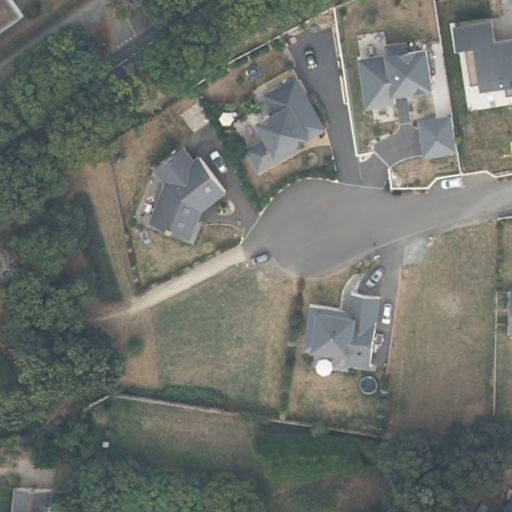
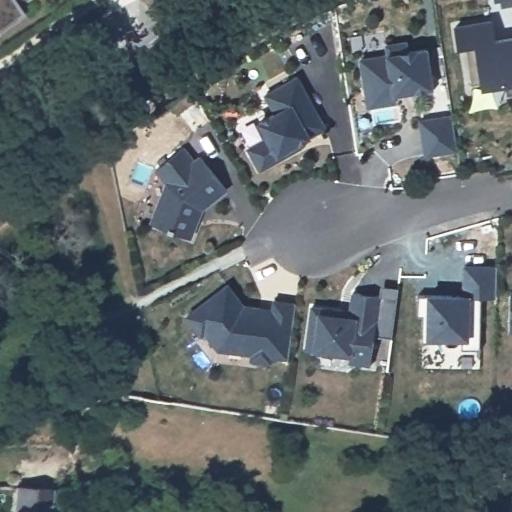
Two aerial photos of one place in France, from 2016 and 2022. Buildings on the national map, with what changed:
unchanged [(14,0),(26,16),(0,34),(0,0),(14,0)]
new [(503,0),(512,0),(512,4),(503,5),(503,0)]
unchanged [(457,47),(453,28),(492,23),(495,41),(512,39),(512,94),(507,95),(506,86),(483,89),(483,84),(470,84),(465,45),(457,47)]
unchanged [(396,95),(396,102),(367,107),(361,57),(386,52),(427,45),(433,90),(396,95)]
unchanged [(266,137),(257,122),(273,113),(263,95),(295,77),(323,127),(307,136),(306,132),(295,139),(299,146),(260,168),(247,146),(266,137)]
unchanged [(456,151),(425,156),(417,120),(451,115),(456,151)]
unchanged [(182,146),(194,160),(199,155),(226,187),(201,206),(190,235),(151,220),(166,180),(155,167),(182,146)]
new [(462,294),(463,265),(496,266),(496,298),(480,297),(478,350),(461,348),(462,341),(426,339),(426,315),(417,315),(418,295),(427,295),(427,293),(462,294)]
new [(295,302),(288,360),(272,357),(272,363),(251,361),(252,356),(218,351),(206,335),(201,337),(185,315),(227,283),(245,305),(270,307),(271,299),(295,302)]
unchanged [(382,285),(398,288),(390,335),(391,336),(374,333),(380,297),(382,285)]
unchanged [(347,308),(350,292),(380,297),(370,365),(351,365),(352,357),(303,350),(308,302),(347,308)]
unchanged [(14,492),(50,495),(48,512),(12,512),(14,492)]
new [(512,512),(508,512),(505,510),(512,498),(512,512)]

